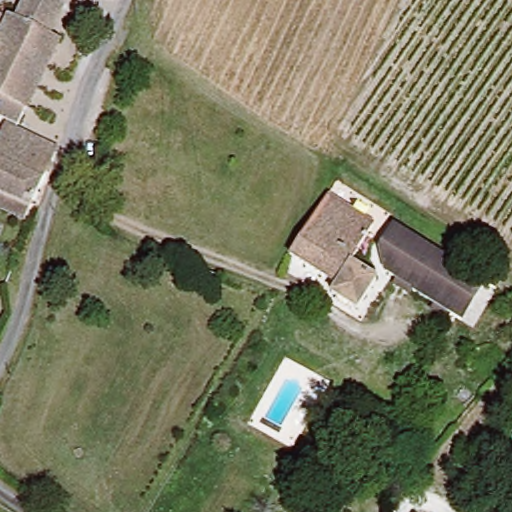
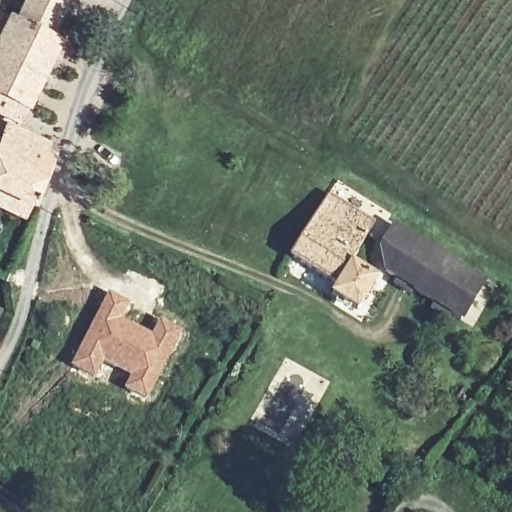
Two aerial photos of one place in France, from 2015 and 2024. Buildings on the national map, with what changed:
unchanged [(25,0),(54,0),(64,5),(48,36),(58,42),(20,123),(0,114),(0,14),(14,21),(25,0)]
unchanged [(48,143),(56,147),(29,205),(24,217),(0,206),(0,141),(7,125),(48,143)]
unchanged [(371,224),(351,256),(338,278),(292,249),(325,194),(371,224)]
unchanged [(379,251),(395,228),(479,279),(456,315),(384,272),(379,251)]
unchanged [(359,303),(332,286),(338,278),(351,256),(378,273),(359,303)]
new [(107,291),(131,303),(123,318),(151,332),(159,317),(183,329),(147,400),(123,388),(128,376),(105,363),(95,380),(69,366),(107,291)]

